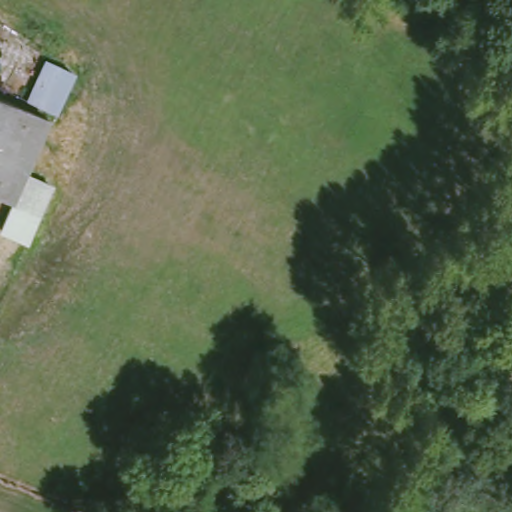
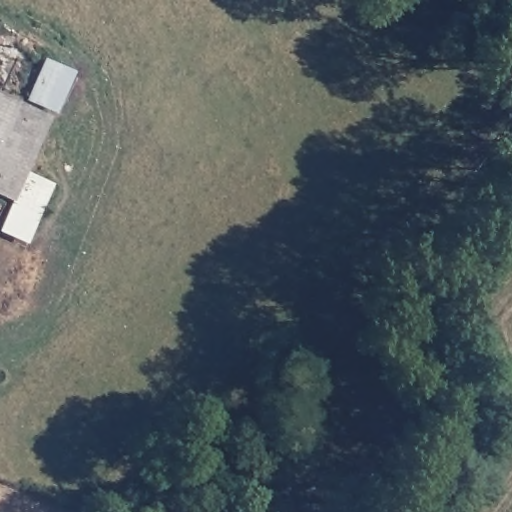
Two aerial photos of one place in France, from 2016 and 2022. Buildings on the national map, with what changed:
unchanged [(0,95),(27,108),(50,60),(76,75),(50,119),(18,205),(0,197),(0,95)]

